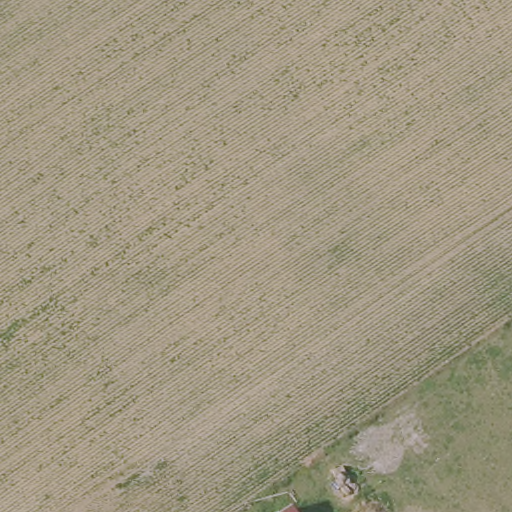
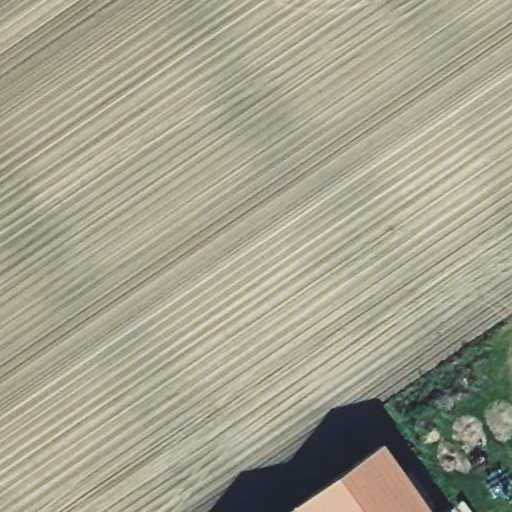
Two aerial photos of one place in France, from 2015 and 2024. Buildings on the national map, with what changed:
new [(382,445),(429,512),(288,512),(382,445)]
demolished [(300,512),(294,512),(298,510),(300,512)]

